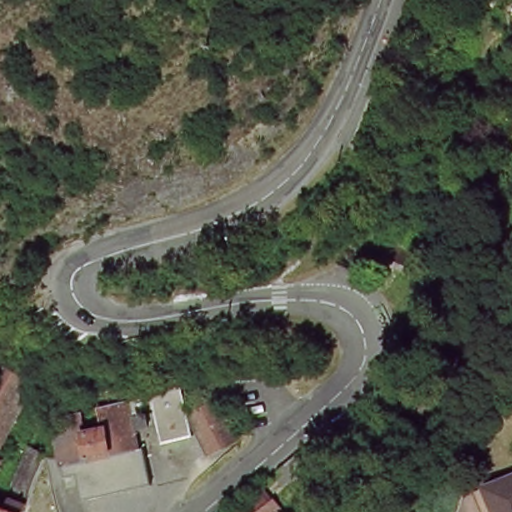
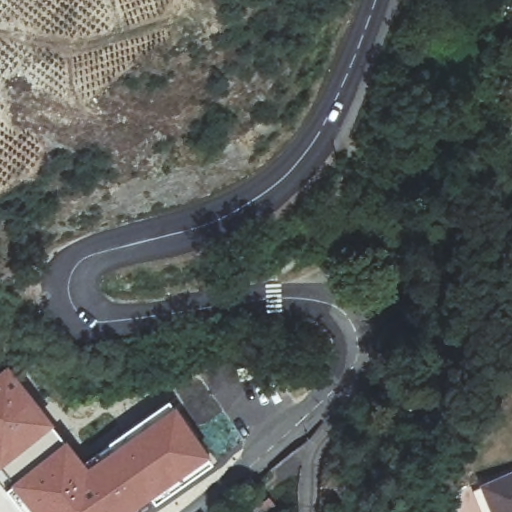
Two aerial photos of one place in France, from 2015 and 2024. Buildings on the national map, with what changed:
unchanged [(382,234),(422,251),(408,282),(369,265),(382,234)]
demolished [(0,434),(0,367),(27,381),(0,434)]
new [(168,403),(212,466),(146,512),(13,512),(0,496),(0,378),(7,372),(81,464),(168,403)]
demolished [(207,400),(230,437),(204,452),(182,415),(207,400)]
demolished [(72,473),(59,476),(46,421),(72,415),(77,432),(95,428),(92,408),(122,401),(132,448),(138,447),(147,483),(78,499),(72,473)]
demolished [(172,407),(175,426),(152,432),(149,424),(132,428),(128,417),(172,407)]
demolished [(33,469),(30,476),(23,492),(8,486),(18,463),(33,469)]
unchanged [(512,469),(512,512),(495,512),(482,480),(512,469)]
unchanged [(247,504),(266,489),(275,500),(275,499),(286,512),(253,512),(247,504)]
demolished [(19,503),(15,512),(0,512),(0,505),(3,497),(19,503)]

